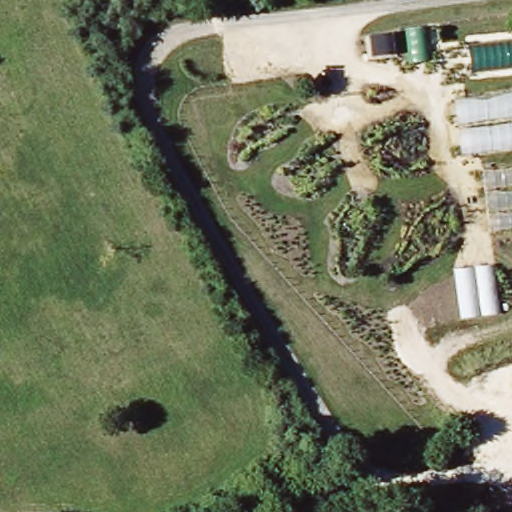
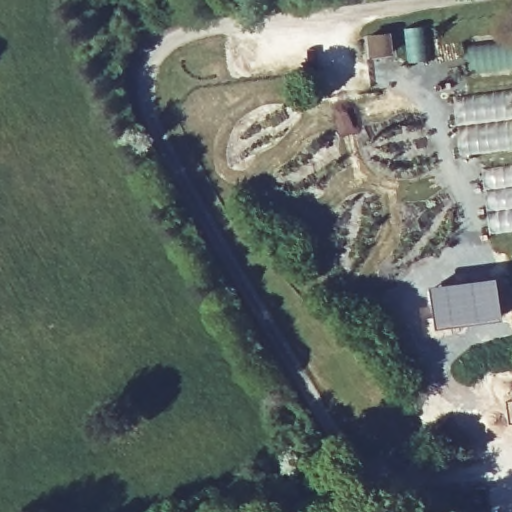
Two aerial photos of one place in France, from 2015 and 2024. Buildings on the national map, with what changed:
unchanged [(512,45),(512,70),(485,73),(483,49),(512,45)]
unchanged [(512,89),(512,145),(461,151),(455,95),(512,89)]
unchanged [(512,167),(512,229),(494,231),(486,171),(512,167)]
new [(497,275),(503,319),(437,327),(431,284),(497,275)]

